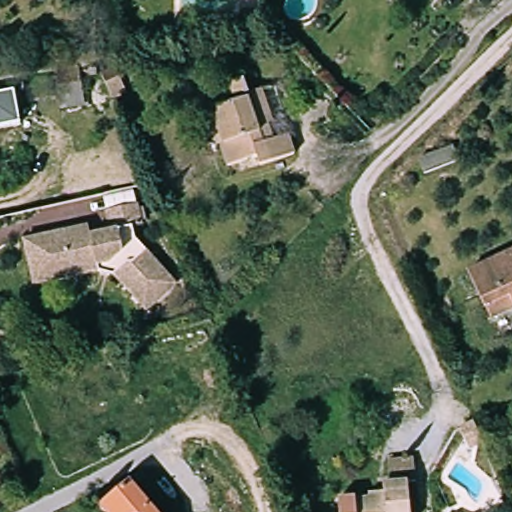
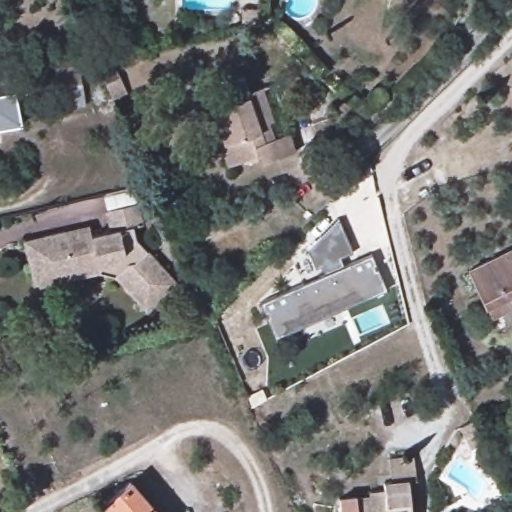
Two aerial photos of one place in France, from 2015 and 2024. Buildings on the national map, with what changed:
unchanged [(80,105),(65,109),(56,110),(48,65),(72,60),(80,105)]
unchanged [(118,105),(106,78),(120,71),(132,98),(118,105)]
unchanged [(222,81),(238,75),(245,91),(257,86),(269,120),(264,122),(268,137),(284,132),(290,151),(255,164),(250,150),(223,160),(206,109),(229,100),(222,81)]
unchanged [(7,116),(0,118),(0,96),(3,95),(7,116)]
unchanged [(458,160),(421,173),(415,159),(450,144),(458,160)]
unchanged [(75,256),(57,260),(49,233),(69,229),(70,235),(95,230),(96,235),(118,230),(113,207),(142,201),(148,224),(140,225),(145,245),(182,285),(153,311),(113,269),(80,277),(75,256)]
new [(320,269),(314,272),(305,253),(335,221),(351,255),(338,260),(341,268),(373,254),(378,265),(376,265),(378,268),(380,267),(390,289),(380,293),(379,291),(288,333),(289,336),(279,340),(263,305),(323,276),(320,269)]
unchanged [(41,285),(30,238),(49,233),(57,260),(75,256),(80,277),(41,285)]
unchanged [(512,247),(512,309),(494,318),(469,267),(512,247)]
unchanged [(351,500),(383,498),(382,485),(390,483),(387,460),(411,458),(413,481),(404,482),(407,512),(352,512),(351,500)]
unchanged [(132,480),(159,512),(105,512),(101,507),(132,480)]

